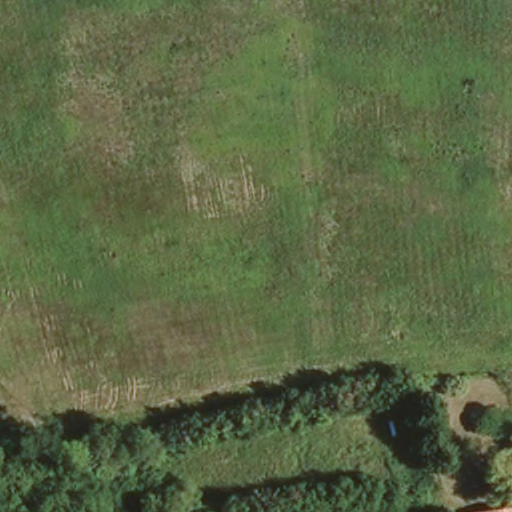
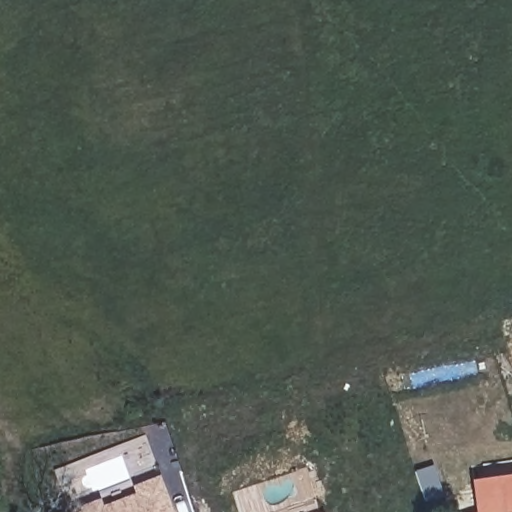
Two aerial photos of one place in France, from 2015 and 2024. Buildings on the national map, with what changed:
new [(442,496),(425,502),(415,472),(432,466),(442,496)]
new [(470,480),(512,475),(512,512),(476,512),(470,480)]
new [(96,499),(99,507),(132,494),(129,487),(158,476),(172,512),(70,512),(69,510),(96,499)]

